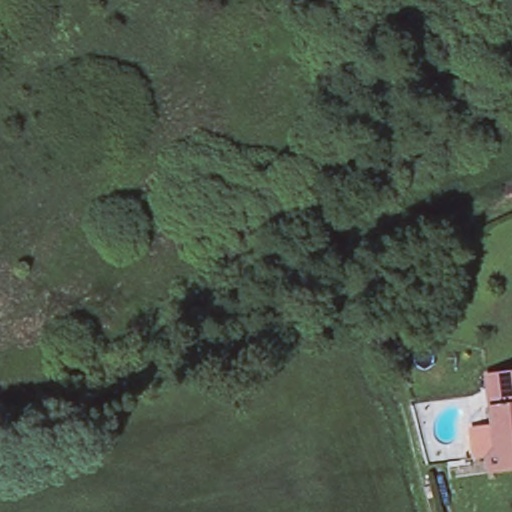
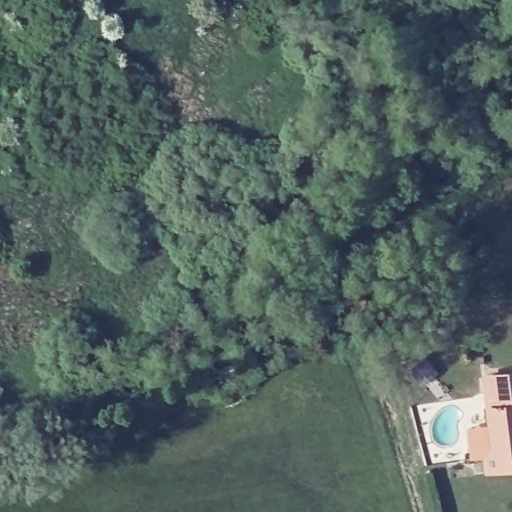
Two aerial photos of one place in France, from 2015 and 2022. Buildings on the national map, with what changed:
unchanged [(512,370),(512,464),(485,467),(483,453),(491,444),(483,374),(512,370)]

